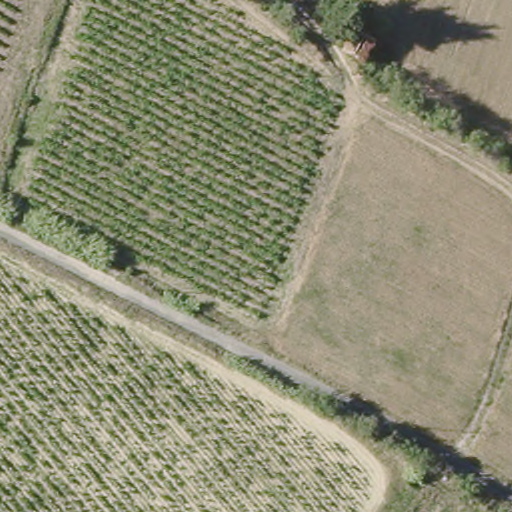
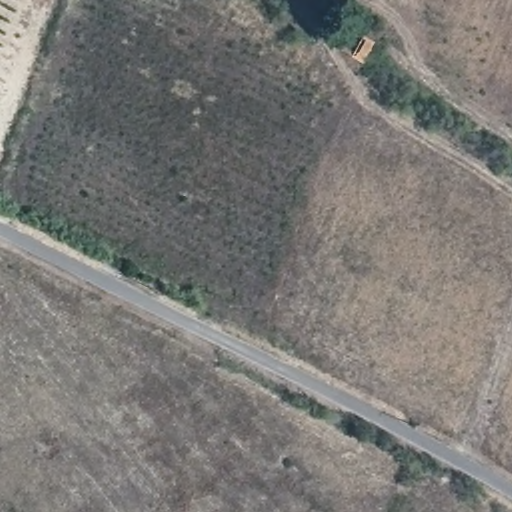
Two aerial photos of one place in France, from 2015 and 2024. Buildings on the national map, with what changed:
unchanged [(360,34),(351,58),(331,49),(341,25),(360,34)]

